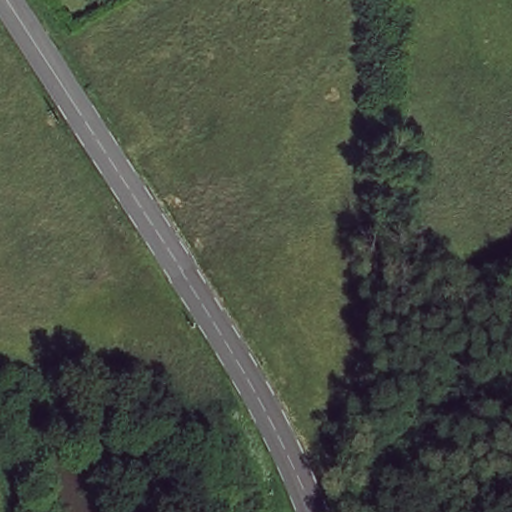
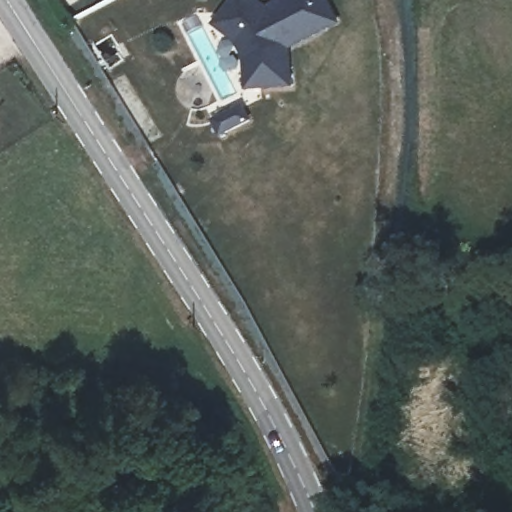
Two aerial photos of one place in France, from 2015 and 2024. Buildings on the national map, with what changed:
new [(244,91),(243,59),(234,43),(211,26),(231,0),(258,0),(268,7),(280,0),(327,0),(339,24),(289,48),(293,88),(244,91)]
new [(215,124),(228,117),(244,109),(251,122),(235,131),(221,137),(215,124)]

